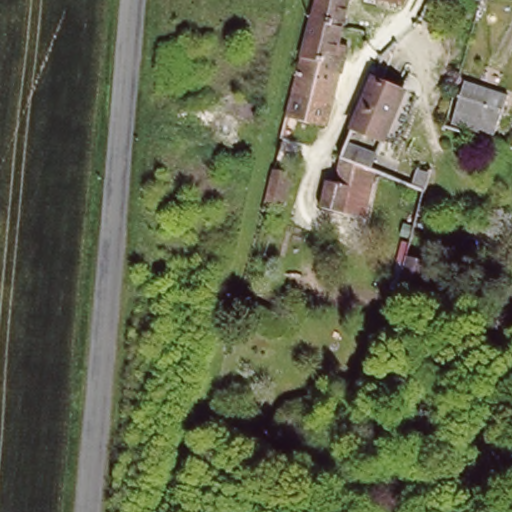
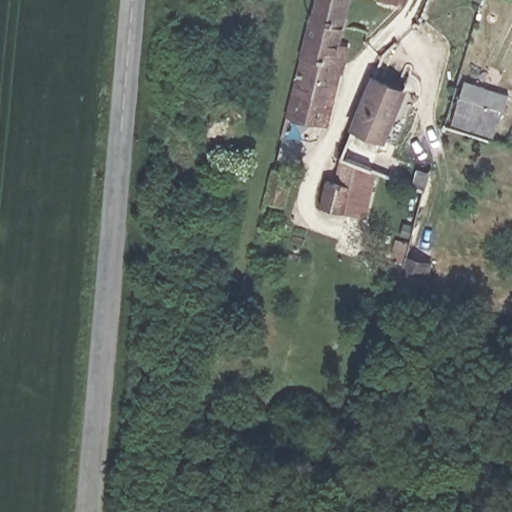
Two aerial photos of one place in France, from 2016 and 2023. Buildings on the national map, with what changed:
unchanged [(338,10),(308,2),(309,0),(341,0),(338,10)]
unchanged [(403,0),(410,0),(410,1),(403,0)]
unchanged [(469,0),(478,0),(476,4),(469,0)]
unchanged [(283,99),(291,70),(297,44),(308,2),(338,10),(335,24),(335,37),(335,40),(333,46),(325,79),(322,78),(315,108),(283,99)]
unchanged [(369,77),(395,86),(379,131),(350,122),(369,77)]
unchanged [(503,93),(492,133),(451,121),(463,79),(503,93)]
unchanged [(315,202),(323,178),(327,179),(329,174),(331,168),(336,156),(350,122),(379,131),(366,167),(351,162),(334,210),(315,202)]
unchanged [(275,168),(282,170),(288,172),(283,198),(268,195),(275,168)]
unchanged [(376,192),(368,216),(345,210),(350,183),(376,192)]
unchanged [(405,257),(430,266),(421,297),(395,290),(405,257)]

